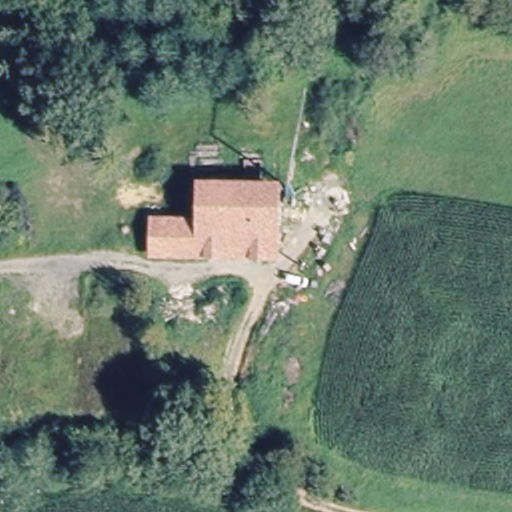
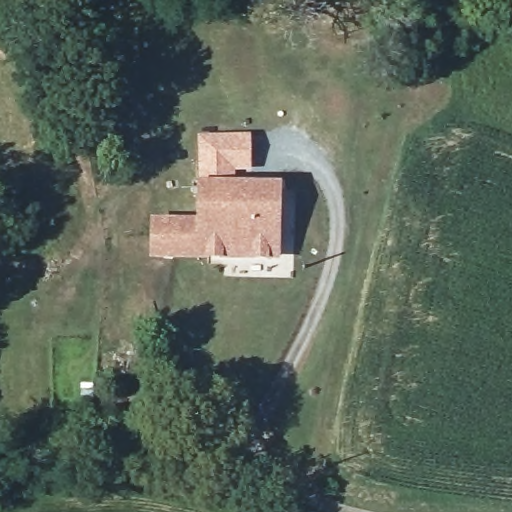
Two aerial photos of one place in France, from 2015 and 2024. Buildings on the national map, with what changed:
new [(236,173),(236,194),(203,194),(200,194),(197,136),(251,134),(251,172),(236,173)]
unchanged [(157,230),(203,231),(203,194),(274,195),(273,264),(156,261),(157,230)]

